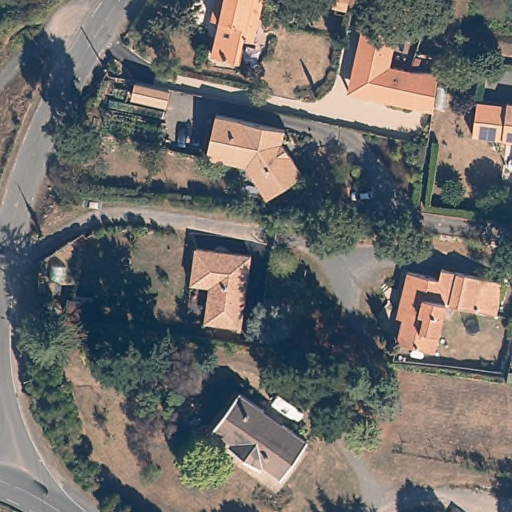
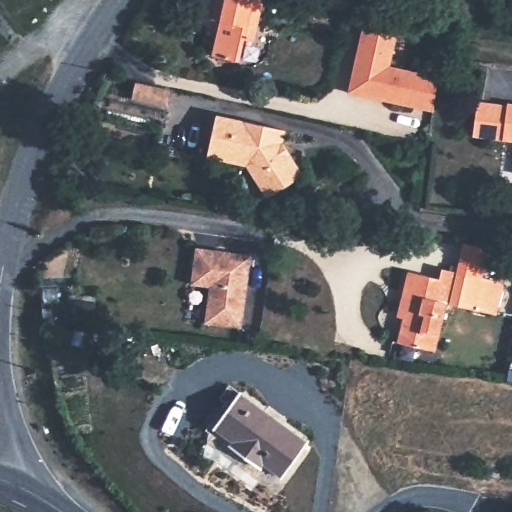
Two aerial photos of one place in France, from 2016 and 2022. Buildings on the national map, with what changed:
unchanged [(220,21),(211,19),(216,0),(225,0),(220,21)]
unchanged [(244,40),(239,62),(212,56),(220,21),(225,0),(263,0),(256,29),(253,42),(244,40)]
unchanged [(355,81),(363,28),(397,35),(390,66),(410,70),(438,72),(433,112),(370,98),(353,95),(355,81)]
unchanged [(508,140),(477,136),(482,99),(512,103),(508,140)]
unchanged [(512,103),(512,141),(508,140),(512,103)]
unchanged [(267,197),(246,166),(207,157),(216,115),(284,130),(282,142),(290,154),(303,174),(267,197)]
unchanged [(240,328),(204,323),(209,287),(190,284),(196,248),(214,251),(214,256),(234,258),(234,254),(250,256),(240,328)]
unchanged [(435,351),(397,343),(409,295),(403,294),(409,271),(439,279),(441,269),(504,283),(496,315),(446,303),(435,351)]
unchanged [(281,477),(263,464),(260,468),(230,445),(232,442),(214,428),(240,393),(264,411),(283,424),(307,442),(281,477)]

